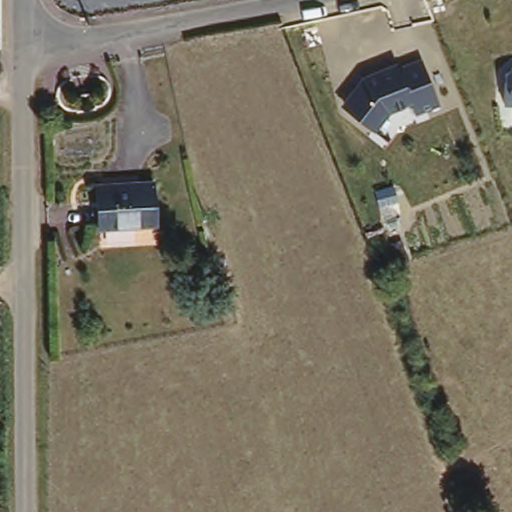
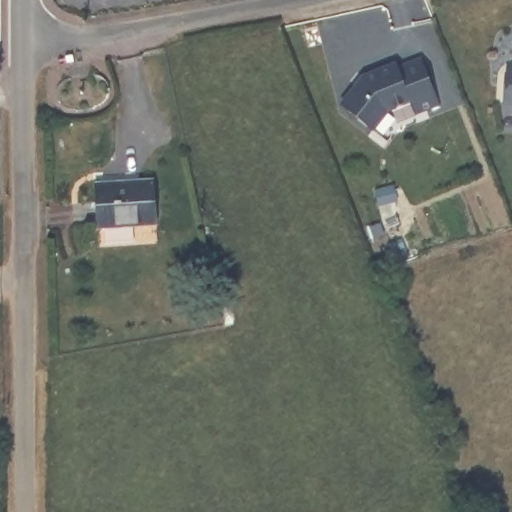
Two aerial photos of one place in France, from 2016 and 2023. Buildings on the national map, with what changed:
unchanged [(364,76),(423,57),(438,106),(414,114),(409,104),(389,114),(378,131),(344,103),(364,76)]
unchanged [(512,62),(512,105),(499,102),(507,61),(512,62)]
unchanged [(157,224),(99,229),(97,188),(153,183),(157,224)]

